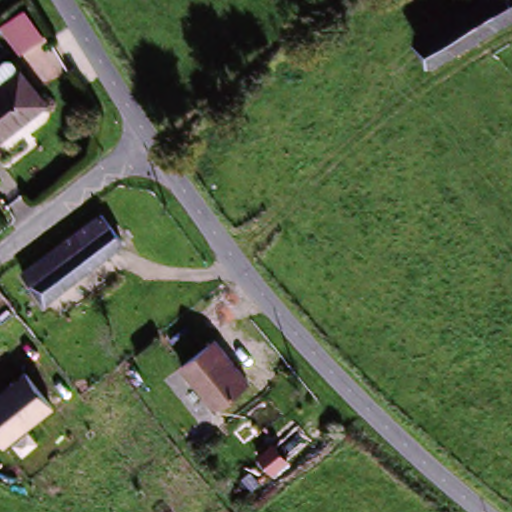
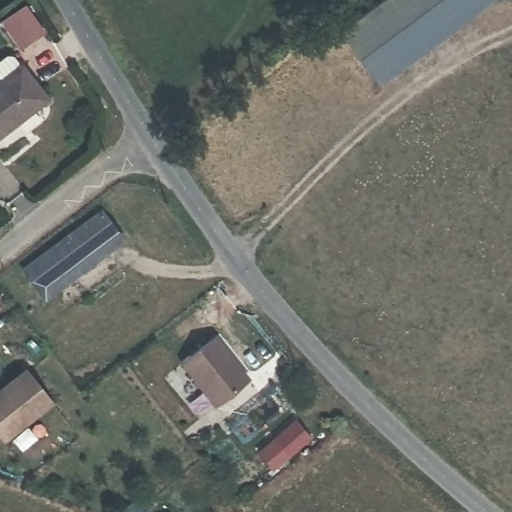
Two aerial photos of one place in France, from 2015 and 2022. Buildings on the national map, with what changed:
new [(337,32),(379,0),(494,0),(378,86),(337,32)]
demolished [(472,0),(512,0),(512,19),(479,36),(461,6),(472,0)]
unchanged [(45,35),(17,50),(0,23),(0,20),(27,4),(45,35)]
unchanged [(48,108),(0,141),(0,87),(24,70),(48,108)]
unchanged [(57,268),(50,257),(105,214),(114,227),(57,268)]
unchanged [(126,244),(70,285),(57,268),(114,227),(126,244)]
unchanged [(214,338),(248,379),(215,407),(182,364),(214,338)]
unchanged [(55,406),(2,446),(0,444),(0,389),(24,369),(55,406)]

